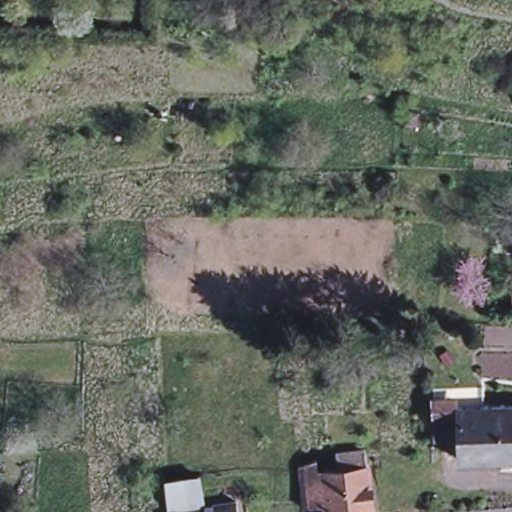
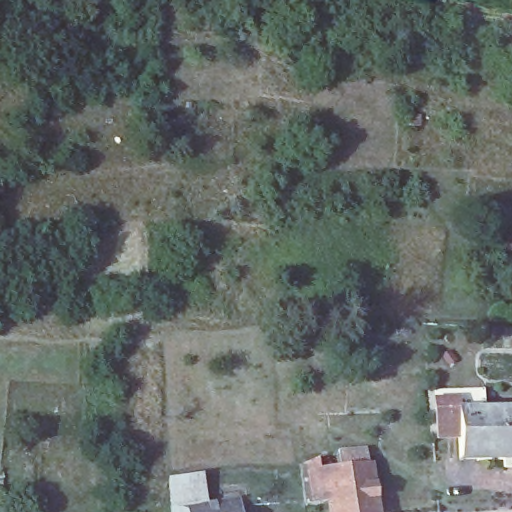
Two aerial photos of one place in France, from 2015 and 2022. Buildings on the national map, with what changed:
unchanged [(512,311),(507,311),(510,290),(512,289),(512,311)]
unchanged [(483,387),(484,407),(480,407),(457,408),(458,422),(430,422),(427,388),(483,387)]
unchanged [(512,406),(512,459),(482,460),(480,407),(484,407),(512,406)]
unchanged [(457,408),(480,407),(482,460),(459,460),(458,422),(457,408)]
unchanged [(347,457),(377,455),(378,468),(383,512),(337,512),(337,508),(313,510),(309,474),(309,469),(328,462),(328,473),(332,473),(348,471),(347,457)]
unchanged [(164,509),(162,478),(191,474),(195,505),(232,501),(233,512),(164,512),(164,509)]

